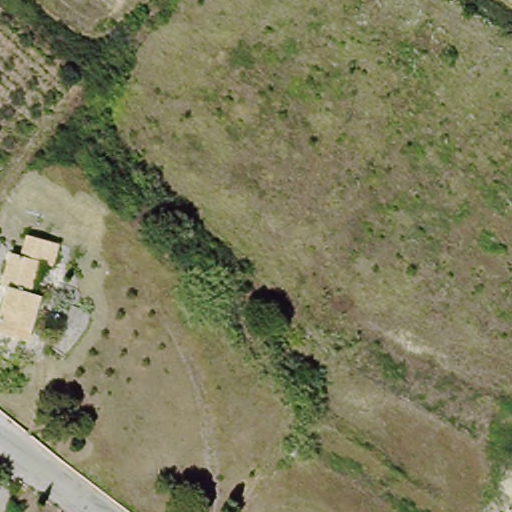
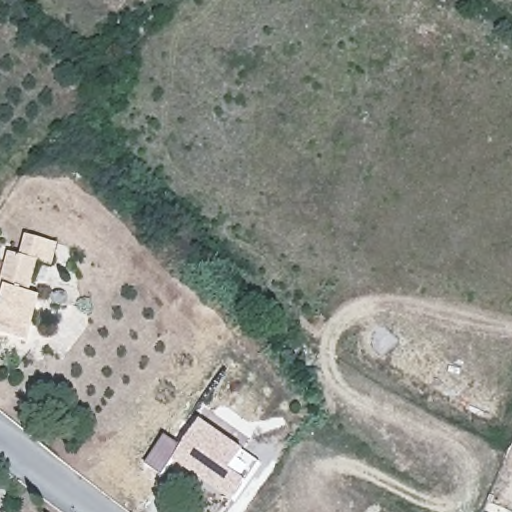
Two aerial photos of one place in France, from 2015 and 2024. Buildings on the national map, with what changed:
unchanged [(30,340),(0,331),(0,326),(8,288),(5,286),(13,254),(28,256),(33,239),(63,249),(56,270),(41,265),(33,293),(42,298),(30,340)]
new [(175,460),(201,421),(246,452),(260,463),(248,483),(233,503),(175,460)]

